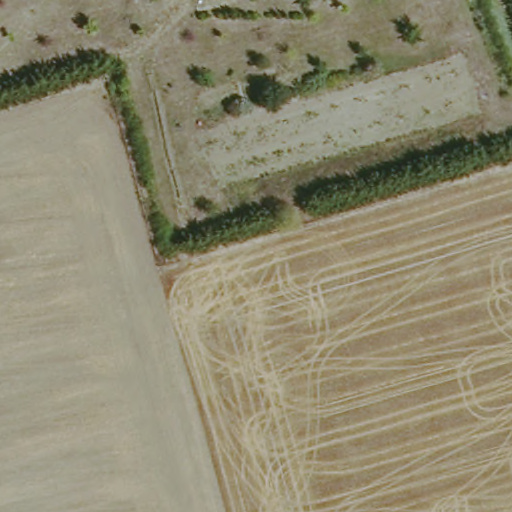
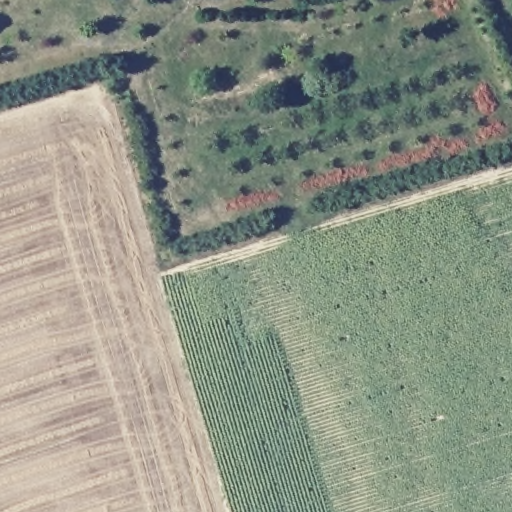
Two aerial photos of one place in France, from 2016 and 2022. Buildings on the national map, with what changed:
[]

